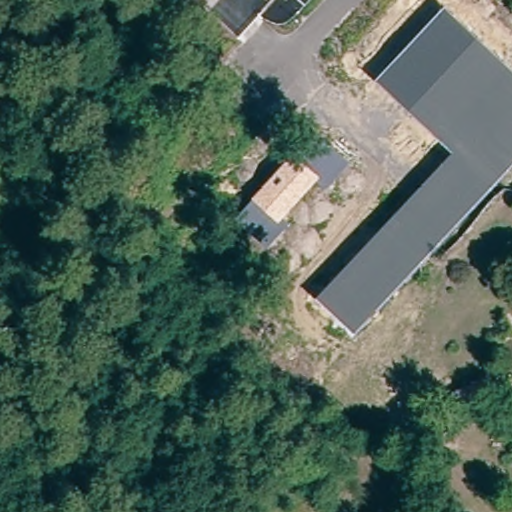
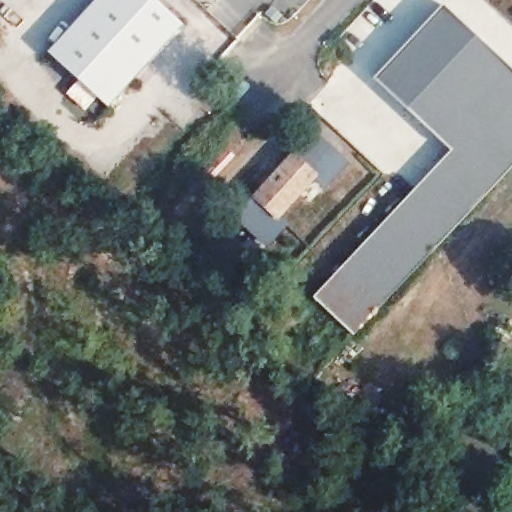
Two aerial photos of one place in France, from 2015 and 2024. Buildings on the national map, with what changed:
new [(111,109),(50,53),(99,0),(158,0),(187,26),(111,109)]
unchanged [(452,152),(376,80),(445,6),(512,69),(512,167),(355,335),(316,298),(452,152)]
unchanged [(291,225),(269,249),(238,219),(294,155),(301,161),(322,138),(352,164),(326,190),(317,181),(285,218),(291,225)]

